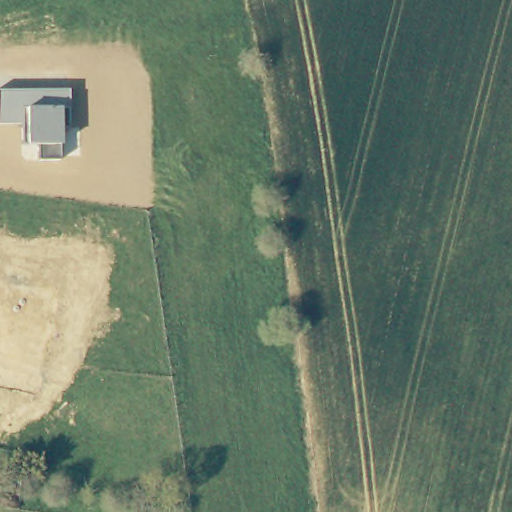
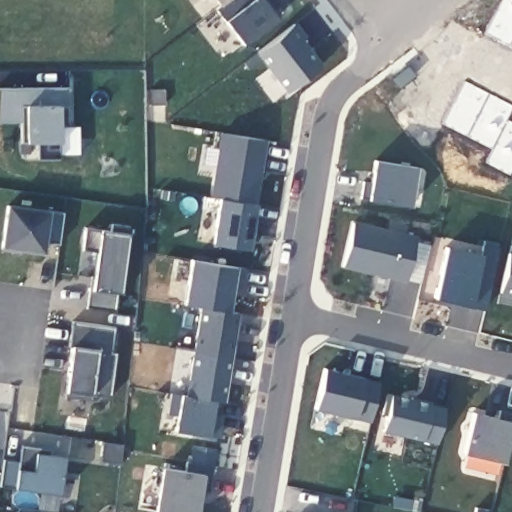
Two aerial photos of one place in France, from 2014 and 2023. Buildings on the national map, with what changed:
new [(273,10),(279,17),(244,44),(226,21),(220,6),(215,0),(278,0),(280,3),(273,10)]
new [(287,92),(257,53),(296,24),(307,36),(305,40),(323,65),(287,92)]
new [(416,76),(401,89),(393,79),(410,67),(416,76)]
unchanged [(70,87),(70,107),(61,106),(61,143),(60,143),(60,158),(39,159),(39,143),(28,143),(29,106),(22,106),(22,122),(0,122),(0,88),(70,87)]
new [(257,205),(250,250),(213,244),(220,198),(211,196),(221,132),(268,141),(257,205)]
new [(372,184),(376,161),(417,168),(411,207),(362,199),(365,183),(372,184)]
unchanged [(65,212),(59,245),(46,243),(45,254),(1,248),(7,204),(65,212)]
new [(407,282),(344,267),(356,221),(418,236),(407,282)]
unchanged [(88,289),(91,289),(97,252),(84,250),(86,228),(110,232),(112,226),(130,228),(121,293),(116,293),(115,311),(85,308),(88,289)]
new [(408,282),(417,242),(432,246),(423,286),(408,282)]
new [(500,251),(486,311),(435,299),(447,248),(482,256),(485,247),(500,251)]
new [(511,251),(512,252),(512,296),(499,293),(511,251)]
new [(245,288),(235,286),(232,311),(240,313),(233,358),(227,357),(193,352),(199,304),(187,303),(194,259),(238,267),(247,269),(245,288)]
new [(66,391),(72,347),(69,345),(74,322),(115,328),(110,352),(116,353),(110,396),(93,395),(92,401),(65,397),(66,391)]
new [(219,402),(215,400),(181,395),(193,352),(227,357),(219,402)]
new [(371,422),(316,409),(326,367),(365,377),(381,382),(371,422)]
new [(219,402),(214,415),(223,417),(220,438),(210,438),(175,432),(177,417),(168,414),(171,393),(181,395),(215,400),(219,402)]
new [(438,445),(383,432),(391,393),(433,402),(448,407),(438,445)]
new [(465,453),(475,412),(512,422),(512,435),(505,463),(465,453)]
new [(15,488),(21,445),(51,449),(50,454),(64,457),(60,495),(15,488)]
new [(210,492),(202,492),(200,512),(160,512),(156,511),(164,467),(185,470),(187,462),(212,466),(210,492)]

